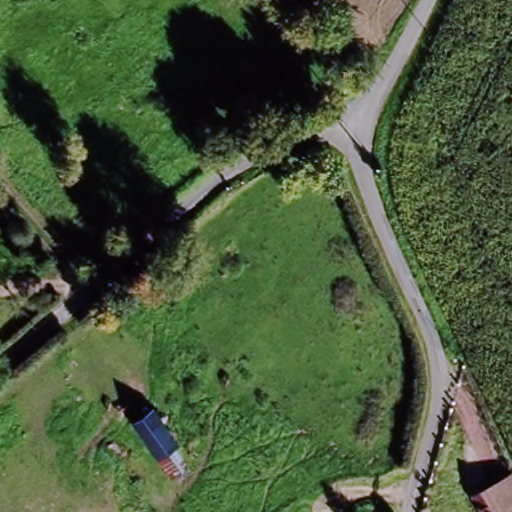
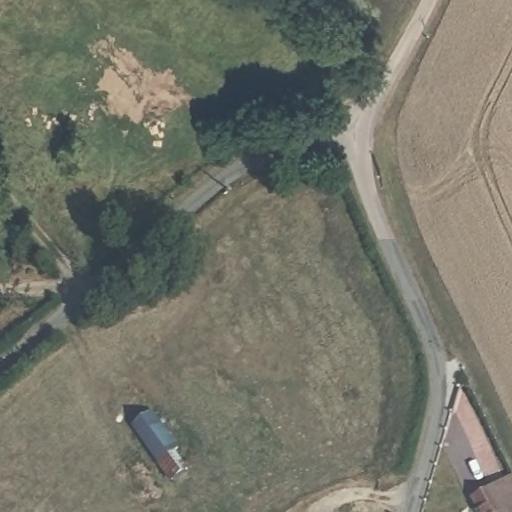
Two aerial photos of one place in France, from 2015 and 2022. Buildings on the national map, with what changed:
unchanged [(188,470),(184,474),(196,490),(183,499),(123,411),(141,400),(188,470)]
unchanged [(512,512),(498,486),(512,479),(512,512)]
unchanged [(498,486),(512,512),(484,512),(477,498),(498,486)]

